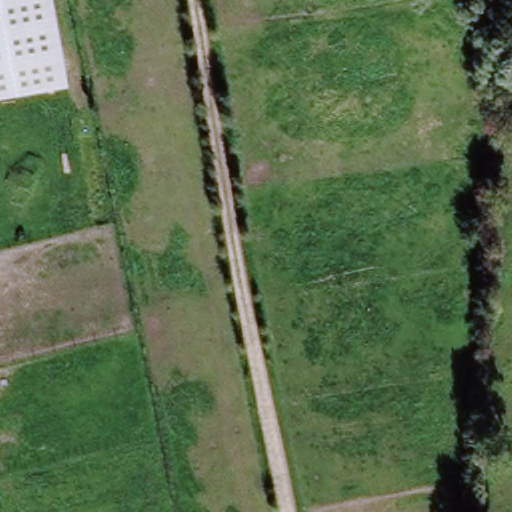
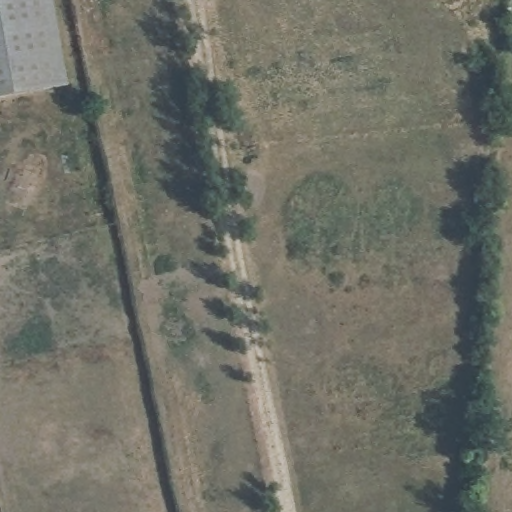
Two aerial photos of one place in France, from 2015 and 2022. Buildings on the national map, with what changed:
unchanged [(0,101),(0,0),(50,0),(65,91),(0,101)]

